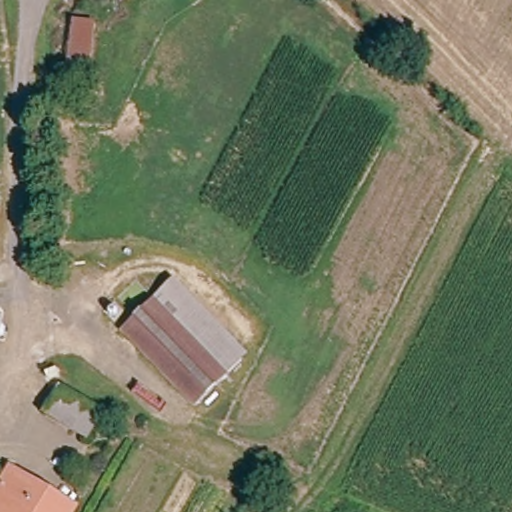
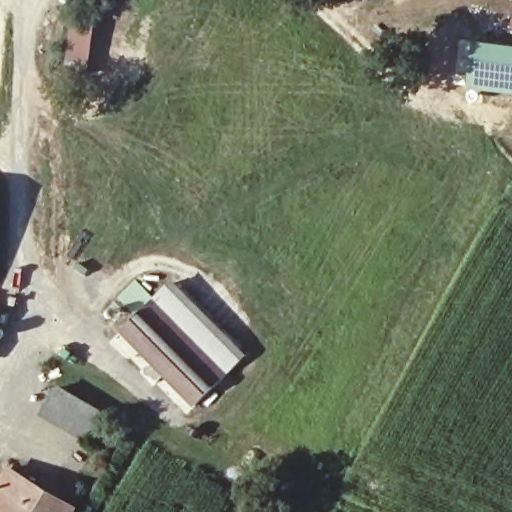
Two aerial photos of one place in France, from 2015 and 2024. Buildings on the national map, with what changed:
unchanged [(68,76),(76,25),(100,28),(93,79),(68,76)]
new [(512,45),(512,94),(468,89),(475,40),(512,45)]
unchanged [(0,212),(0,198),(3,199),(0,212)]
unchanged [(126,332),(177,281),(250,354),(201,403),(126,332)]
unchanged [(53,415),(66,390),(106,413),(94,438),(53,415)]
unchanged [(0,499),(16,471),(45,489),(78,507),(75,512),(0,512),(0,499)]

